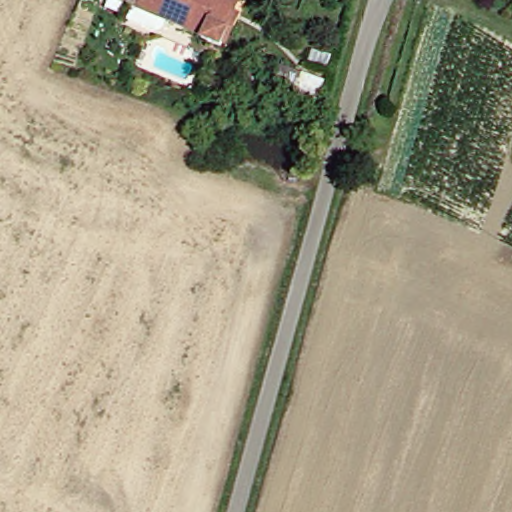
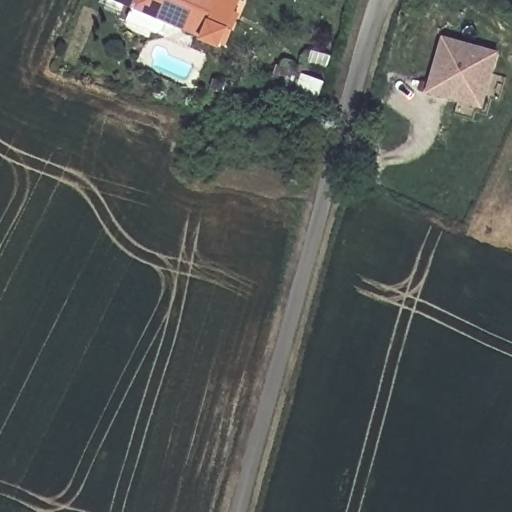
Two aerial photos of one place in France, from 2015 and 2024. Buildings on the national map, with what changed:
unchanged [(122,17),(129,3),(123,0),(236,0),(215,48),(197,39),(198,36),(161,18),(154,32),(122,17)]
new [(443,38),(497,53),(482,106),(428,91),(443,38)]
new [(301,96),(312,53),(333,58),(323,103),(301,96)]

